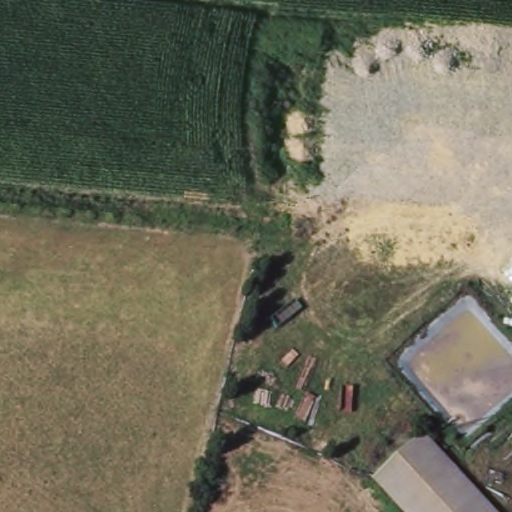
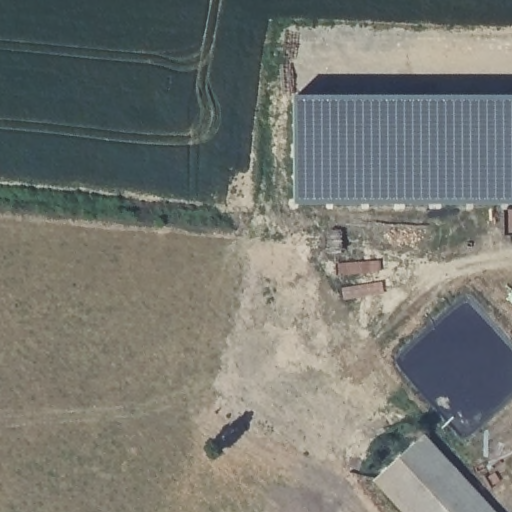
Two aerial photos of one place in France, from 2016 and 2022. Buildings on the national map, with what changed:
new [(296,97),(512,97),(512,204),(296,204),(296,97)]
unchanged [(493,512),(407,512),(379,482),(425,438),(493,512)]

